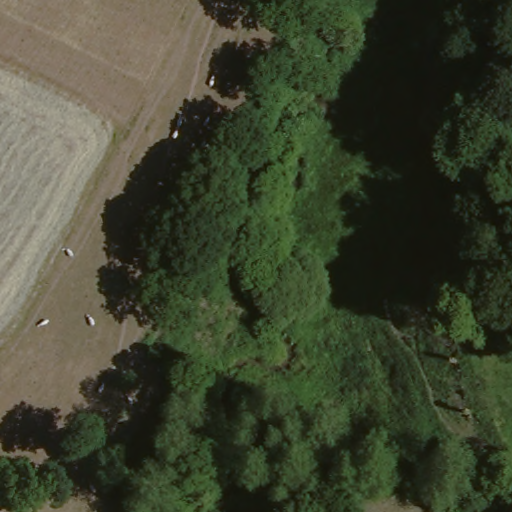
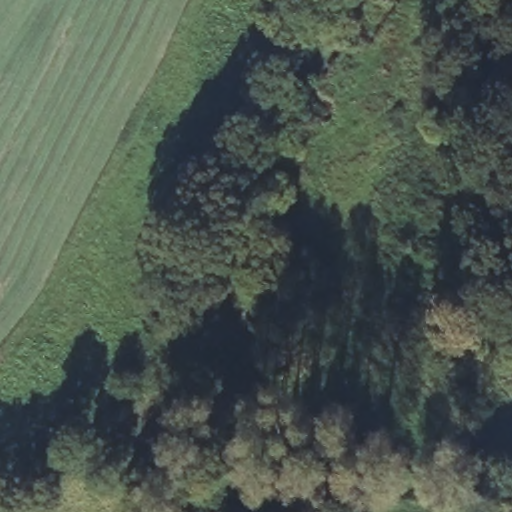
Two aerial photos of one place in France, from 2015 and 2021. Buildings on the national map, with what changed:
[]

